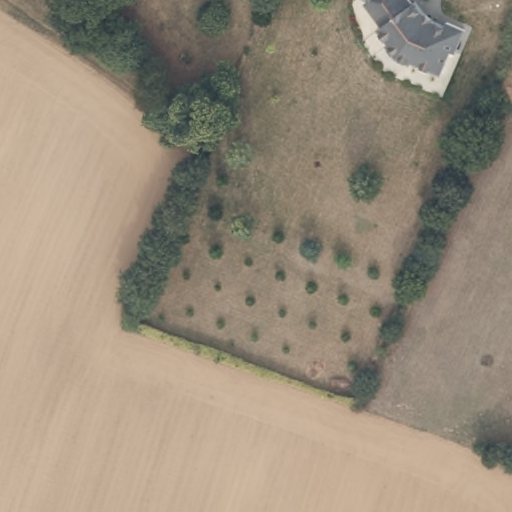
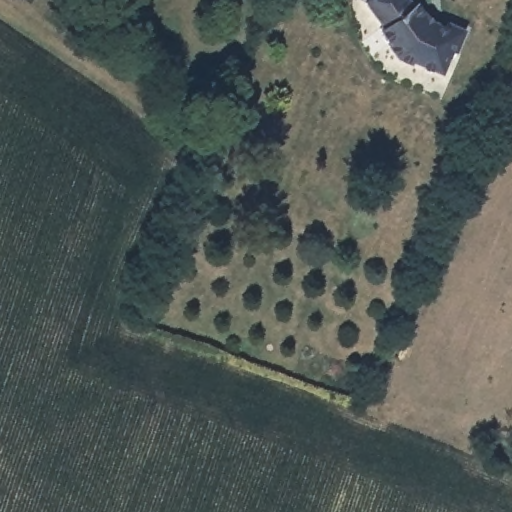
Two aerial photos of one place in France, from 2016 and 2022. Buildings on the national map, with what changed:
unchanged [(453,46),(441,68),(414,53),(412,56),(397,48),(388,35),(390,34),(380,20),(383,18),(367,0),(421,0),(425,4),(440,16),(448,21),(452,19),(468,27),(457,48),(453,46)]

